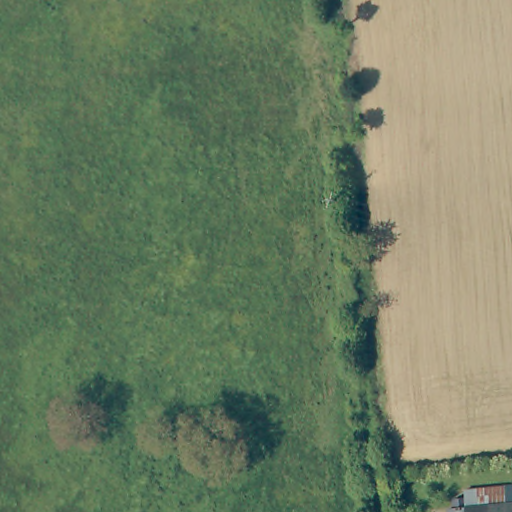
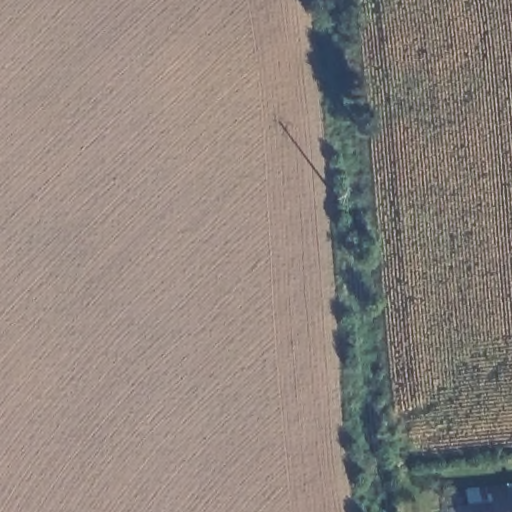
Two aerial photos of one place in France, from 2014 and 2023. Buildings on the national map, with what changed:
unchanged [(448,507),(454,506),(454,497),(465,496),(464,490),(512,485),(512,512),(448,512),(448,507)]

